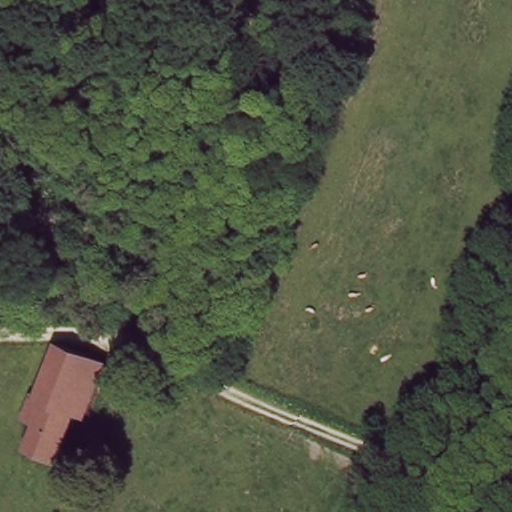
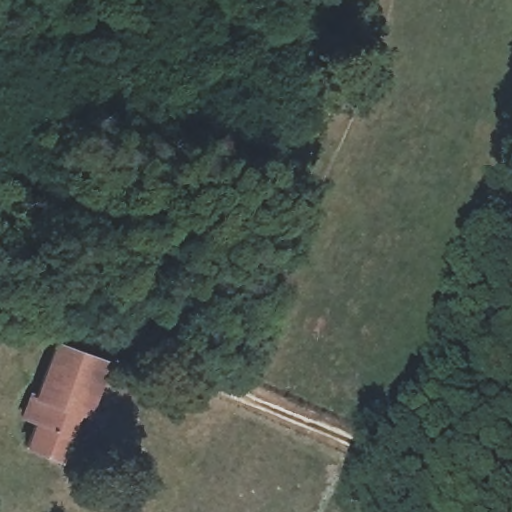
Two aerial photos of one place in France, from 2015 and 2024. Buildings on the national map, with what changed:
unchanged [(93,354),(64,458),(39,450),(43,425),(32,416),(36,394),(44,395),(56,340),(61,340),(65,340),(93,354)]

